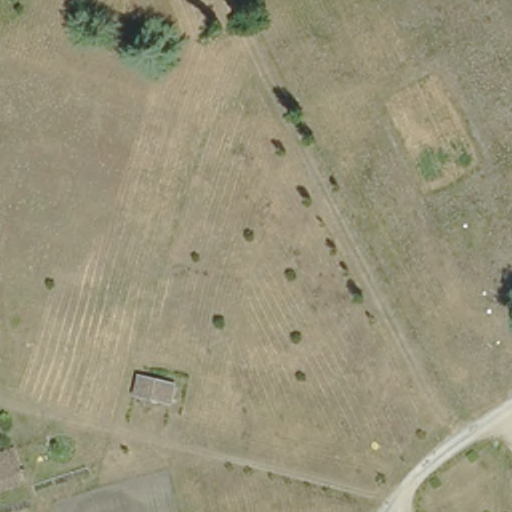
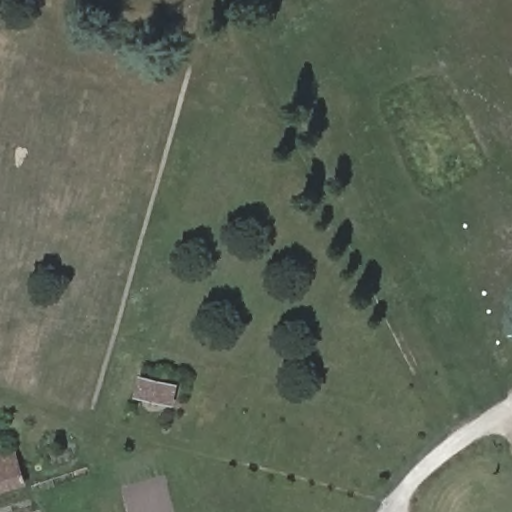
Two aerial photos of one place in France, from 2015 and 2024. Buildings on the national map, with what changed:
unchanged [(145,376),(147,378),(148,381),(147,384),(145,386),(143,386),(141,385),(140,383),(139,380),(141,378),(142,377),(143,376),(145,376)]
unchanged [(177,385),(171,402),(160,398),(167,382),(177,385)]
unchanged [(11,441),(24,472),(0,483),(0,446),(11,441)]

